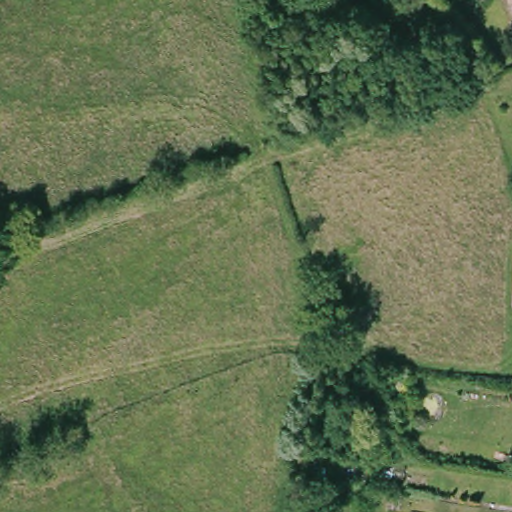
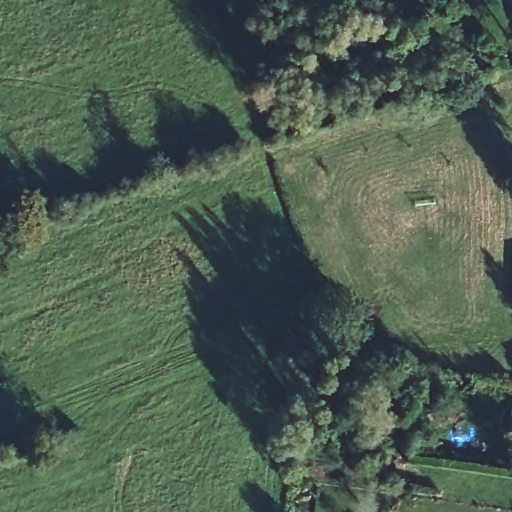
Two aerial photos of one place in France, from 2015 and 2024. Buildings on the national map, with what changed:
[]

